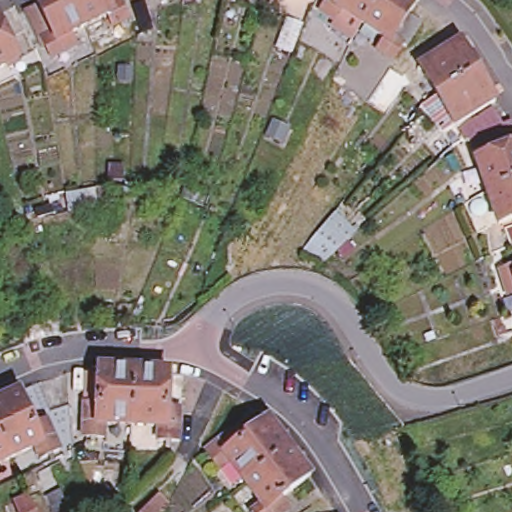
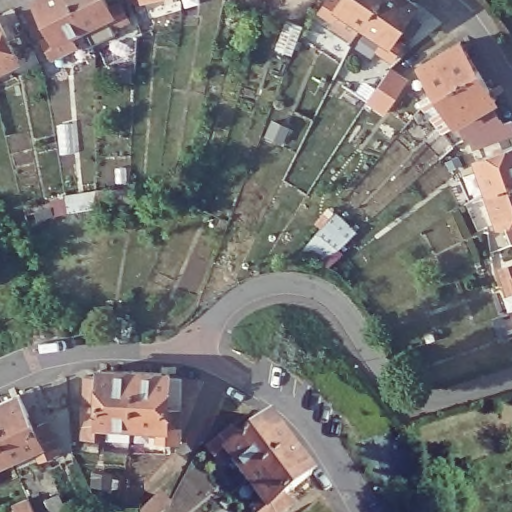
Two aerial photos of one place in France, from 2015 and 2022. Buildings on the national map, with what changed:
unchanged [(40,31),(35,33),(19,0),(74,0),(80,14),(55,25),(62,36),(46,45),(40,31)]
unchanged [(104,1),(80,14),(74,0),(123,0),(126,5),(110,13),(104,1)]
unchanged [(145,0),(150,15),(140,17),(137,19),(130,0),(145,0)]
unchanged [(316,0),(336,0),(327,9),(316,0)]
unchanged [(338,0),(366,0),(356,14),(338,0)]
unchanged [(379,29),(356,14),(366,0),(405,0),(402,4),(415,14),(400,35),(397,34),(385,49),(371,39),(379,29)]
unchanged [(20,49),(0,59),(0,11),(20,49)]
unchanged [(292,53),(277,47),(286,21),(302,26),(292,53)]
unchanged [(412,86),(429,76),(412,47),(452,23),(470,51),(487,79),(445,104),(438,109),(433,112),(427,104),(412,86)]
new [(392,69),(409,80),(386,114),(369,103),(392,69)]
unchanged [(460,118),(455,119),(450,108),(485,87),(495,104),(503,101),(508,114),(480,124),(465,130),(460,118)]
unchanged [(462,150),(507,134),(512,147),(512,169),(474,183),(462,150)]
unchanged [(512,204),(485,214),(474,183),(512,169),(512,204)]
unchanged [(99,192),(132,193),(132,204),(98,204),(98,209),(70,214),(67,200),(99,194),(99,192)]
unchanged [(339,208),(358,233),(325,267),(301,250),(339,208)]
unchanged [(492,218),(512,211),(512,229),(498,234),(492,218)]
unchanged [(501,260),(512,256),(512,283),(510,284),(501,260)]
unchanged [(84,428),(85,396),(87,367),(100,368),(100,361),(135,362),(133,417),(105,416),(105,429),(84,428)]
unchanged [(160,419),(133,417),(135,362),(172,364),(170,401),(182,402),(182,434),(159,433),(160,419)]
unchanged [(52,437),(32,446),(25,434),(4,444),(3,444),(0,437),(0,385),(12,380),(27,413),(39,408),(52,437)]
unchanged [(220,461),(207,442),(234,422),(242,433),(270,412),(292,439),(247,474),(231,452),(220,461)]
unchanged [(3,444),(4,444),(0,446),(0,437),(3,444)]
unchanged [(250,501),(261,493),(247,474),(292,439),(312,467),(283,488),(290,499),(273,512),(260,512),(250,501)]
unchanged [(51,499),(62,494),(70,512),(57,512),(51,499)]
unchanged [(39,512),(21,512),(18,504),(32,498),(39,512)]

